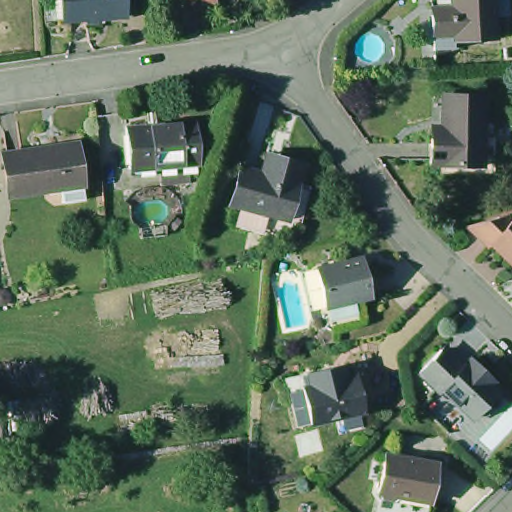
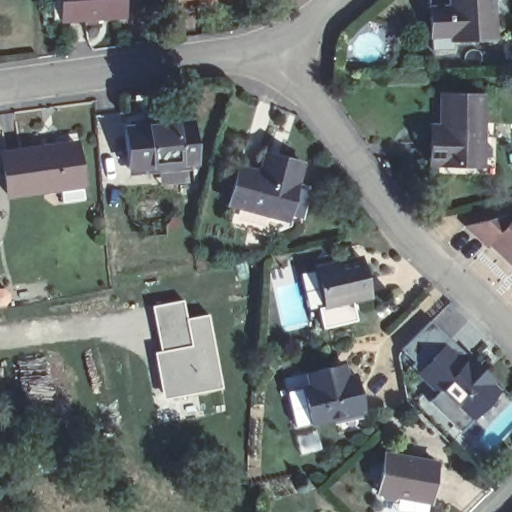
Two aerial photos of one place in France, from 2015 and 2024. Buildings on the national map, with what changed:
unchanged [(68,0),(130,0),(131,9),(75,14),(70,14),(68,0)]
unchanged [(183,0),(201,0),(183,2),(183,0)]
unchanged [(203,7),(201,0),(217,0),(218,6),(203,7)]
unchanged [(456,15),(454,0),(494,0),(501,35),(457,43),(459,51),(439,54),(436,39),(433,19),(456,15)]
unchanged [(449,131),(449,99),(489,100),(489,165),(439,166),(439,142),(439,131),(449,131)]
unchanged [(134,174),(130,135),(138,134),(199,129),(204,167),(143,173),(134,174)]
unchanged [(61,195),(59,181),(8,187),(5,147),(77,139),(83,178),(85,192),(61,195)]
unchanged [(269,174),(274,156),(284,159),(311,166),(297,221),(238,206),(247,168),(269,174)]
unchanged [(492,214),(507,226),(512,219),(512,273),(462,226),(492,214)]
unchanged [(320,309),(310,266),(359,258),(368,298),(320,309)]
new [(182,300),(185,320),(211,313),(227,392),(176,398),(173,390),(161,391),(156,360),(161,360),(153,306),(182,300)]
unchanged [(442,344),(460,364),(467,355),(503,385),(471,421),(418,375),(442,344)]
unchanged [(304,424),(298,370),(347,364),(348,377),(359,375),(364,412),(304,424)]
unchanged [(428,504),(376,496),(382,451),(434,459),(428,504)]

